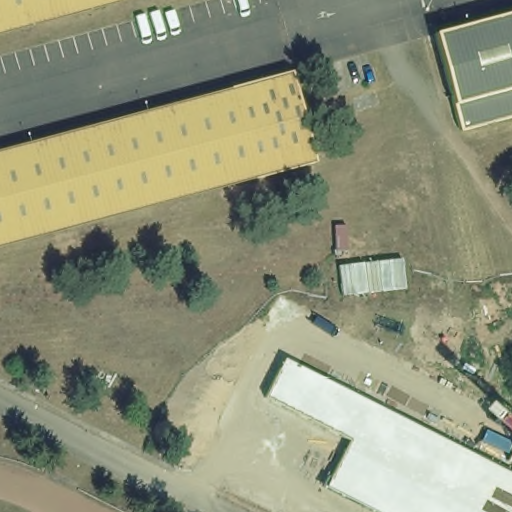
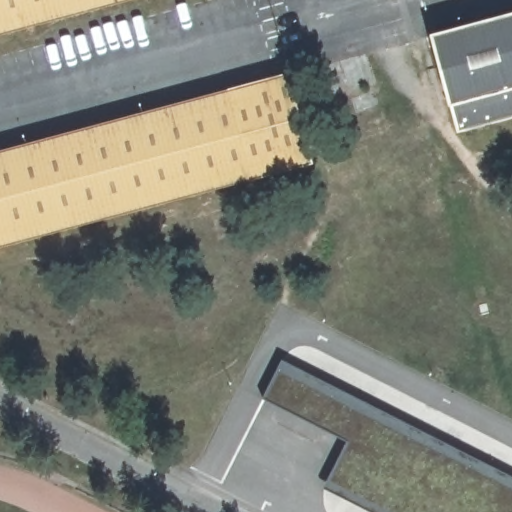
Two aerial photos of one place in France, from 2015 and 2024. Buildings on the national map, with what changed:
unchanged [(0,0),(119,0),(0,33),(0,0)]
unchanged [(435,35),(512,14),(512,115),(459,129),(435,35)]
unchanged [(0,151),(291,73),(313,159),(0,244),(0,151)]
unchanged [(512,472),(512,512),(375,512),(326,487),(349,441),(264,397),(284,360),(512,472)]

